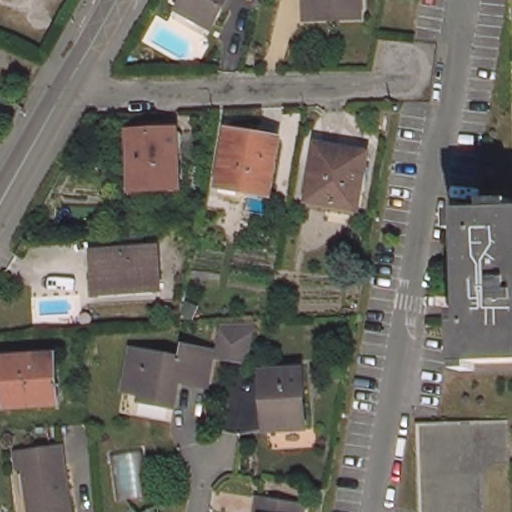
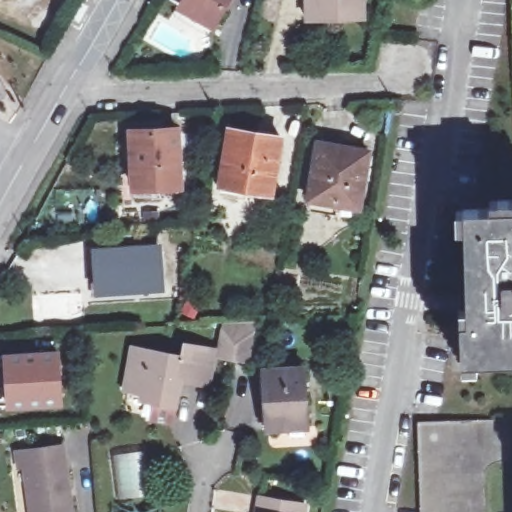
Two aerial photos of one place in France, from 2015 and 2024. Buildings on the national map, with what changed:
unchanged [(214,27),(182,7),(186,0),(230,0),(214,27)]
unchanged [(305,0),(363,0),(364,20),(322,22),(306,23),(305,0)]
unchanged [(509,0),(512,0),(512,91),(509,0)]
unchanged [(222,181),(232,129),(284,138),(275,194),(244,189),(244,184),(222,181)]
unchanged [(134,134),(182,130),(185,185),(155,187),(156,192),(154,192),(151,192),(149,192),(146,192),(144,193),(140,193),(137,193),(134,134)]
unchanged [(310,200),(322,143),(373,151),(363,210),(310,200)]
unchanged [(470,321),(467,210),(512,208),(512,361),(464,362),(462,321),(470,321)]
unchanged [(134,289),(100,291),(97,252),(162,247),(164,275),(165,287),(134,289)]
unchanged [(217,354),(224,321),(229,321),(240,320),(256,319),(259,319),(250,362),(232,357),(217,354)]
unchanged [(142,392),(124,388),(134,348),(182,357),(185,345),(214,350),(205,382),(180,377),(172,405),(153,401),(142,399),(142,392)]
unchanged [(10,407),(6,356),(57,352),(61,403),(10,407)]
unchanged [(271,414),(269,370),(307,368),(310,426),(289,428),(272,428),(271,414)]
unchanged [(512,419),(512,512),(423,512),(420,422),(512,419)]
unchanged [(16,463),(14,448),(61,440),(71,512),(31,512),(24,462),(16,463)]
unchanged [(147,450),(153,495),(122,499),(115,454),(147,450)]
unchanged [(308,512),(259,512),(262,495),(310,504),(308,512)]

